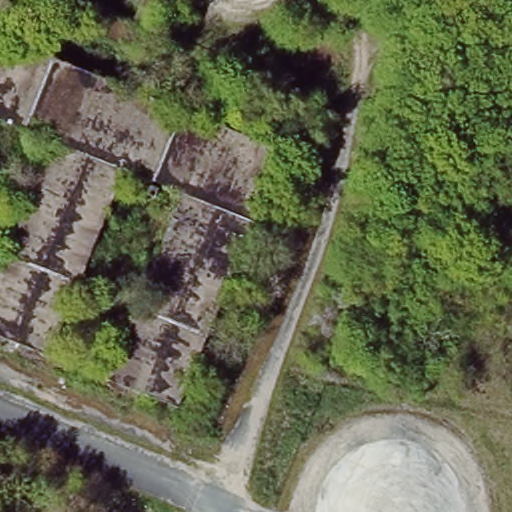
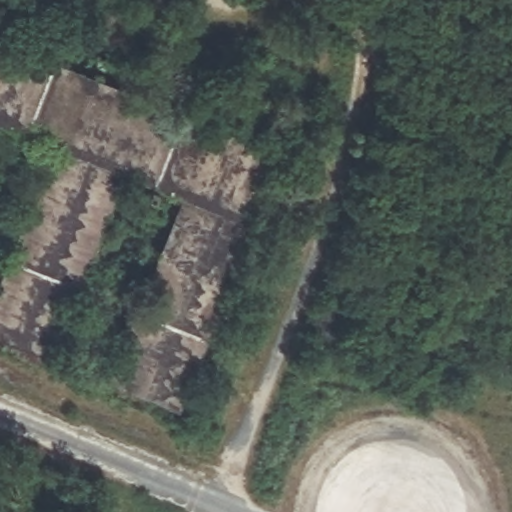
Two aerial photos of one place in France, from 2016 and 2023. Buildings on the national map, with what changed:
unchanged [(178,409),(102,382),(174,198),(122,177),(50,359),(0,341),(0,267),(47,146),(0,126),(0,38),(279,151),(178,409)]

